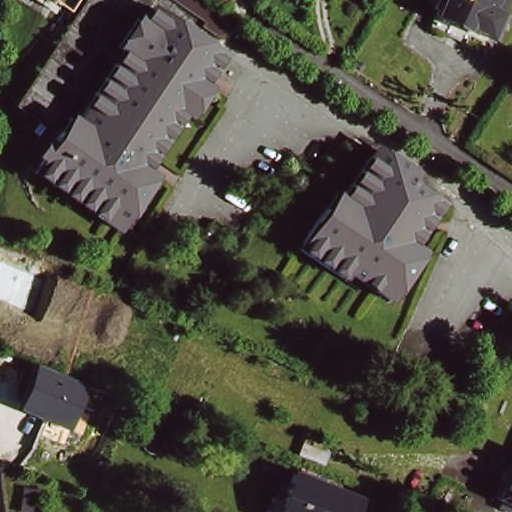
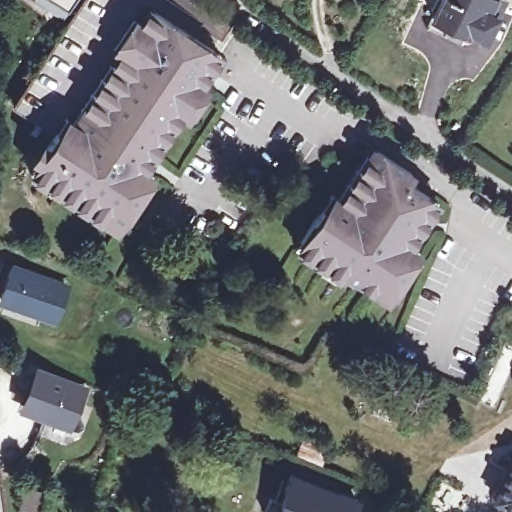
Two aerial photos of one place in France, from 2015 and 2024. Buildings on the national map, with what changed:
unchanged [(117,231),(29,172),(33,165),(55,132),(15,106),(68,24),(34,0),(200,0),(232,22),(213,50),(220,55),(200,85),(180,114),(142,171),(147,173),(152,177),(143,191),(135,204),(142,208),(128,229),(121,225),(117,231)]
unchanged [(465,40),(463,42),(461,42),(458,42),(457,42),(456,44),(421,27),(433,0),(496,0),(489,16),(479,39),(468,33),(465,40)]
unchanged [(362,282),(358,290),(343,279),(300,250),(304,243),(326,210),(335,196),(341,199),(370,156),(377,161),(382,152),(416,176),(410,183),(436,201),(443,205),(414,249),(417,251),(423,255),(414,269),(396,297),(392,302),(362,282)]
new [(10,261),(70,283),(56,323),(0,302),(0,288),(10,261)]
demolished [(57,269),(46,299),(27,292),(37,261),(57,269)]
unchanged [(35,364),(90,385),(71,432),(19,411),(35,364)]
unchanged [(324,445),(317,462),(296,454),(302,437),(324,445)]
unchanged [(501,501),(494,497),(512,463),(512,507),(509,512),(507,512),(498,507),(501,501)]
unchanged [(354,500),(349,512),(263,512),(268,497),(279,502),(289,473),(354,500)]

